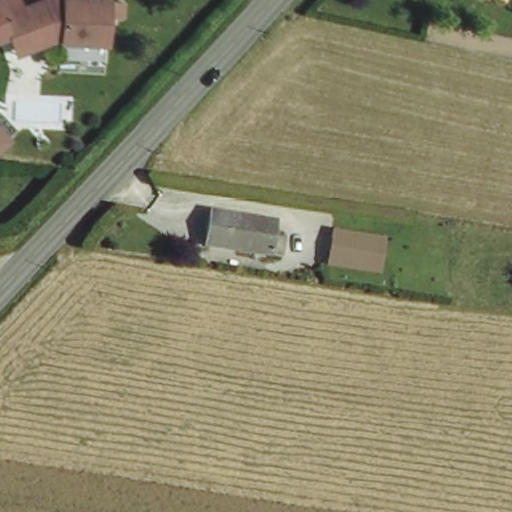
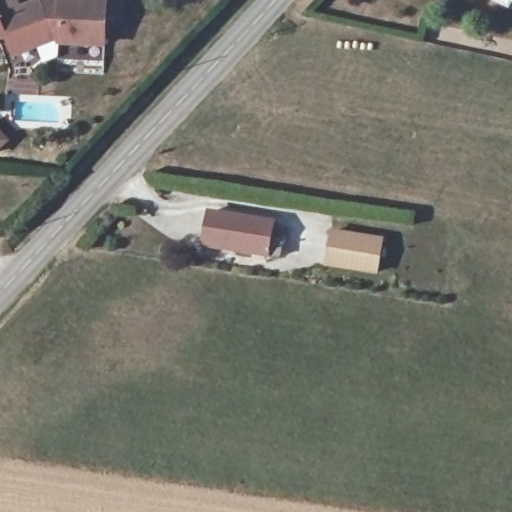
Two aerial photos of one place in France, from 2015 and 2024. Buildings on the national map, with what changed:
unchanged [(8,40),(0,44),(0,8),(13,2),(19,16),(46,4),(105,4),(108,49),(63,51),(61,45),(41,53),(18,61),(8,41),(8,40)]
unchanged [(263,215),(260,234),(275,236),(272,254),(199,242),(206,206),(263,215)]
unchanged [(379,275),(325,267),(331,229),(385,239),(379,275)]

